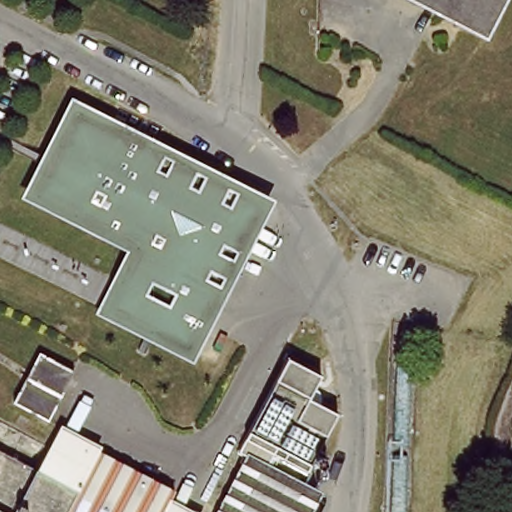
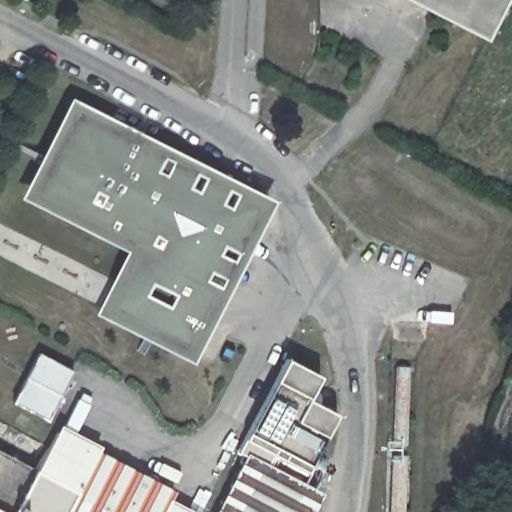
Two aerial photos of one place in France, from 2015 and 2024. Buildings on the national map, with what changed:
unchanged [(401,0),(508,0),(487,42),(401,0)]
unchanged [(117,291),(134,300),(152,263),(30,201),(71,119),(257,212),(185,358),(121,325),(104,317),(117,291)]
unchanged [(10,407),(35,358),(69,375),(64,385),(43,423),(10,407)]
unchanged [(288,359),(325,377),(315,401),(346,416),(313,485),(244,450),(288,359)]
unchanged [(61,426),(100,446),(77,489),(38,468),(61,426)]
unchanged [(100,446),(177,488),(165,512),(0,512),(0,448),(77,489),(100,446)]
unchanged [(228,477),(234,469),(240,472),(244,464),(310,501),(304,512),(217,512),(234,481),(228,477)]
unchanged [(165,512),(171,500),(193,512),(165,512)]

